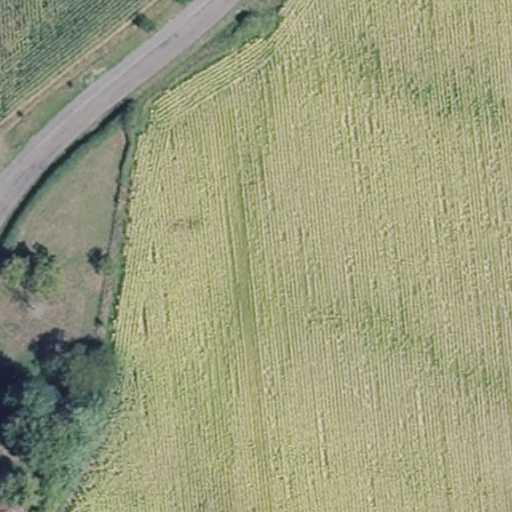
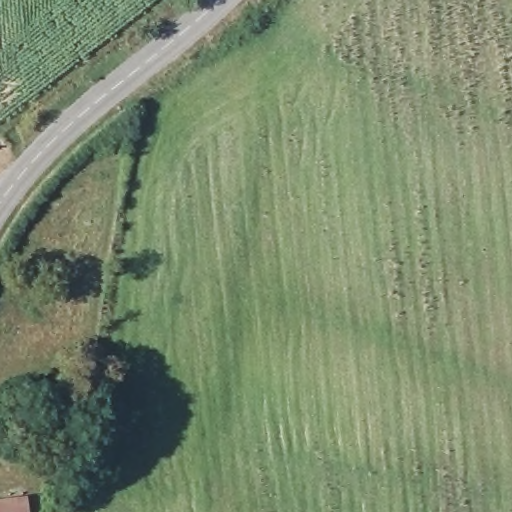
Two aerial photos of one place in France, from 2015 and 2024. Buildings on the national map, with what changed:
demolished [(0,501),(26,498),(28,512),(0,512),(0,501)]
new [(0,506),(24,504),(25,512),(0,512),(0,506)]

